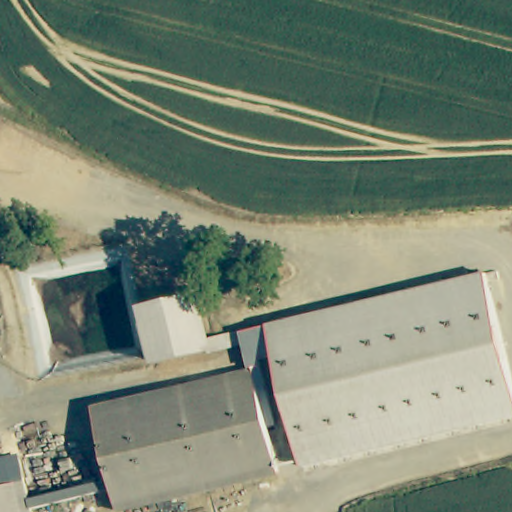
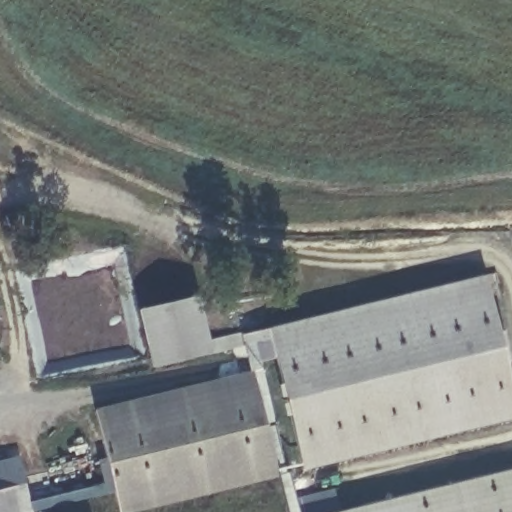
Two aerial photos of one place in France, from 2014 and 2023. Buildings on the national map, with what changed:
unchanged [(260,368),(250,371),(239,332),(269,325),(485,272),(512,382),(512,416),(303,466),(277,364),(260,368)]
unchanged [(137,306),(196,294),(210,351),(151,365),(137,306)]
unchanged [(105,478),(101,458),(111,455),(100,406),(196,383),(260,368),(283,471),(244,480),(124,509),(120,493),(116,476),(105,478)]
unchanged [(23,451),(33,495),(36,512),(0,512),(0,457),(23,451)]
new [(512,471),(512,512),(337,512),(512,471)]
unchanged [(105,478),(116,476),(120,493),(39,512),(37,512),(33,495),(105,478)]

